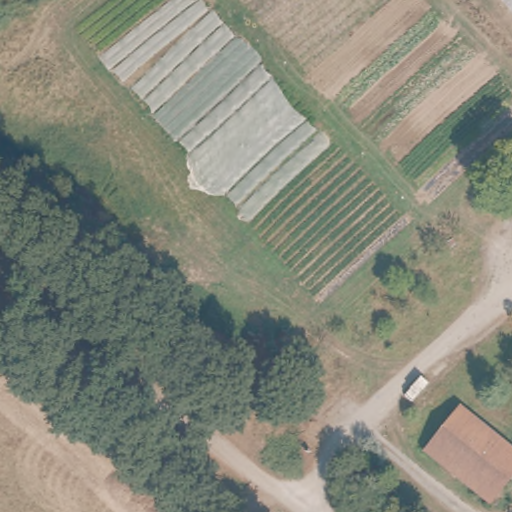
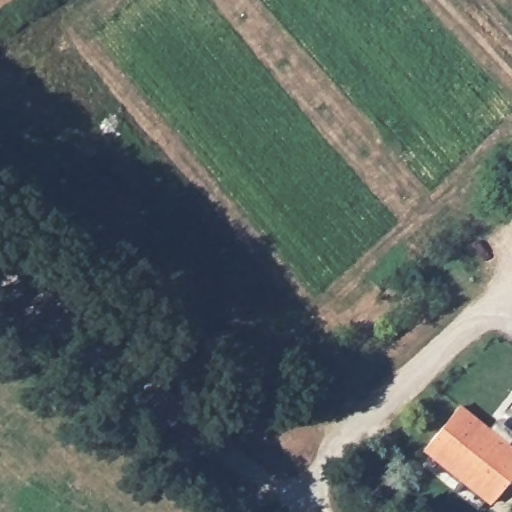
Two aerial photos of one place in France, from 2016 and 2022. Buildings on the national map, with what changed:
unchanged [(512,449),(512,477),(487,506),(420,451),(457,405),(512,449)]

